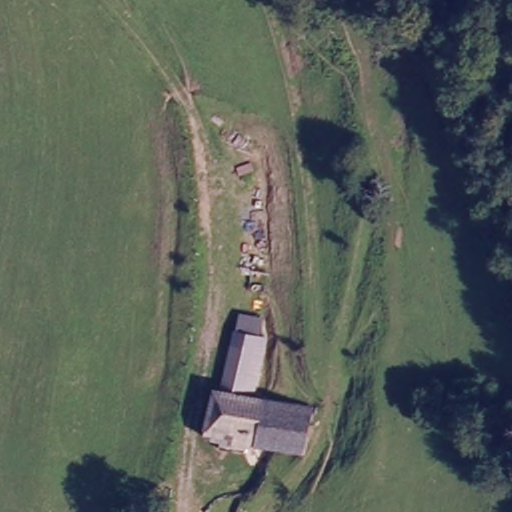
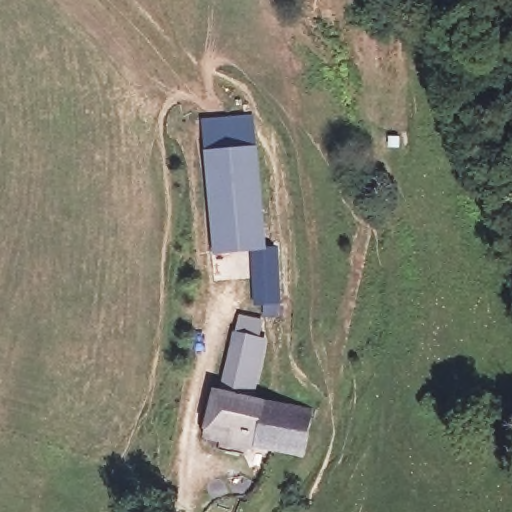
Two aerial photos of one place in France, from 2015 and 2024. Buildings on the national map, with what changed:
new [(253,115),(256,146),(204,151),(201,120),(253,115)]
new [(257,146),(267,249),(214,255),(204,151),(257,146)]
new [(267,249),(277,247),(281,317),(263,318),(262,305),(253,306),(250,251),(267,249)]
unchanged [(261,341),(248,398),(219,393),(230,333),(261,341)]
unchanged [(299,458),(246,447),(245,453),(215,448),(216,442),(202,439),(210,392),(219,393),(248,398),(280,406),(313,412),(299,458)]

